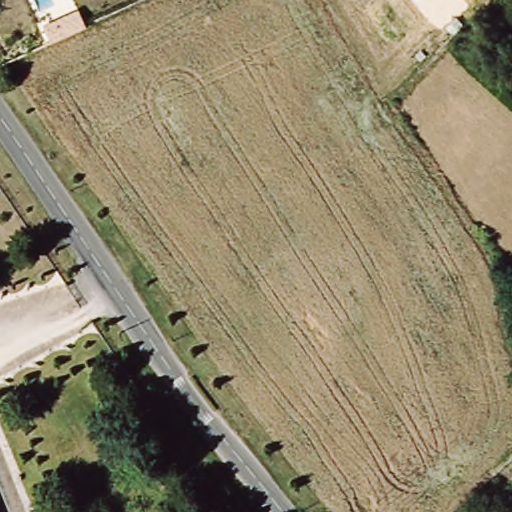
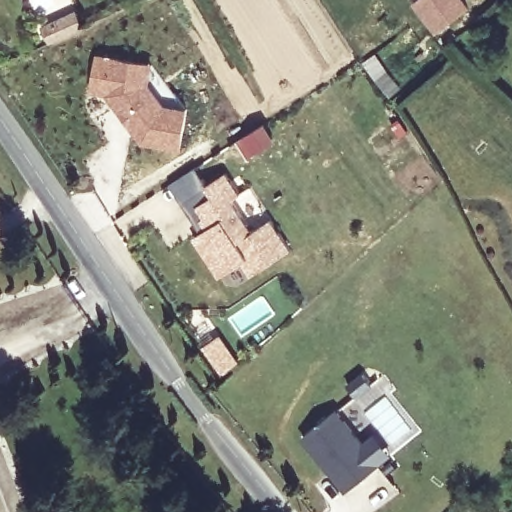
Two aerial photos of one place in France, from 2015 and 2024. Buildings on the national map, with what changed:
new [(434,34),(411,5),(418,0),(465,0),(469,5),(434,34)]
new [(75,12),(82,26),(57,38),(48,42),(41,28),(52,23),(75,12)]
new [(151,83),(166,105),(187,108),(182,148),(143,142),(108,95),(93,93),(98,54),(155,63),(151,83)]
new [(167,187),(194,169),(205,187),(224,174),(238,197),(230,203),(250,234),(268,222),(287,253),(247,279),(238,265),(222,275),(216,279),(191,239),(197,235),(167,187)]
new [(365,449),(377,439),(392,459),(380,468),(381,469),(348,496),(305,441),(338,414),(365,449)]

